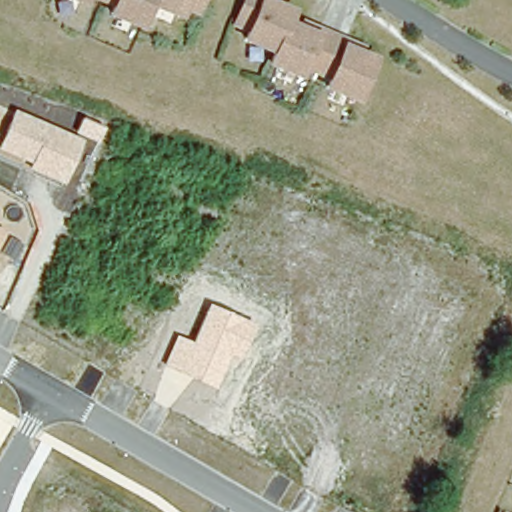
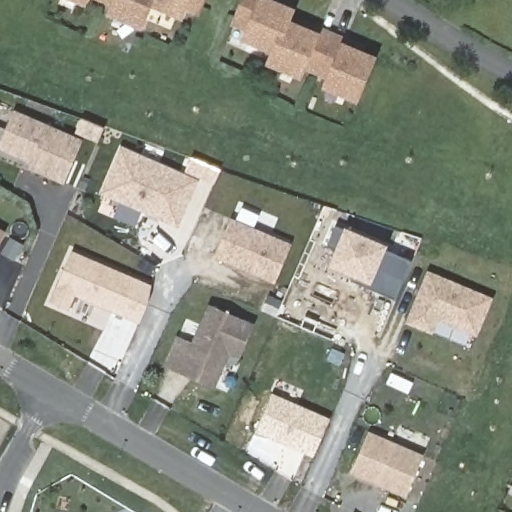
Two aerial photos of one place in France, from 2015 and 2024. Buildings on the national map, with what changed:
unchanged [(86,9),(63,0),(89,0),(86,9)]
unchanged [(182,20),(152,9),(142,32),(114,20),(117,10),(91,0),(207,0),(200,16),(186,11),(182,20)]
unchanged [(370,64),(353,103),(325,91),(328,81),(300,70),(296,79),(267,66),(271,56),(242,44),(246,35),(232,29),(243,0),(264,0),(277,5),(275,11),(288,16),(283,27),(297,32),(299,27),(315,34),(343,46),(360,52),(357,58),(370,64)]
unchanged [(0,149),(0,145),(15,110),(83,140),(66,185),(29,169),(32,162),(0,149)]
new [(112,194),(131,151),(205,183),(186,225),(167,217),(157,212),(112,194)]
new [(275,284),(216,258),(232,222),(291,247),(275,284)]
new [(331,265),(337,252),(326,247),(335,226),(384,248),(382,250),(412,262),(395,300),(366,288),(350,281),(353,275),(368,281),(331,265)]
unchanged [(0,229),(7,233),(0,244),(0,229)]
new [(140,318),(76,290),(69,306),(50,298),(72,246),(152,280),(149,297),(140,318)]
new [(491,300),(476,335),(437,318),(431,332),(407,322),(428,272),(491,300)]
unchanged [(193,342),(210,304),(255,323),(240,358),(231,354),(216,388),(165,365),(177,336),(193,342)]
new [(316,451),(257,426),(272,391),(330,416),(316,451)]
new [(367,430),(422,455),(405,495),(350,472),(367,430)]

